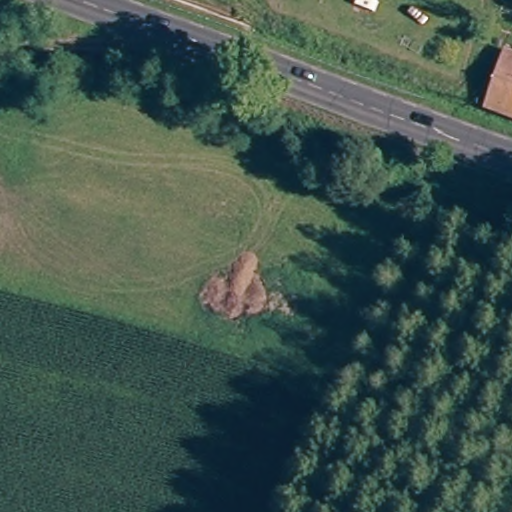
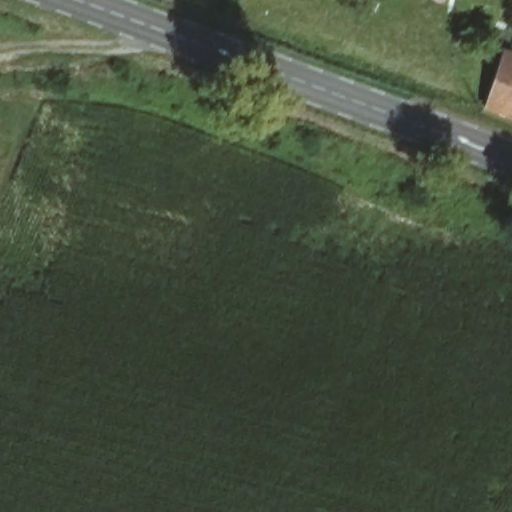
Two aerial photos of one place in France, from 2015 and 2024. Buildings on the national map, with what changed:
unchanged [(507,54),(512,55),(512,117),(490,109),(507,54)]

